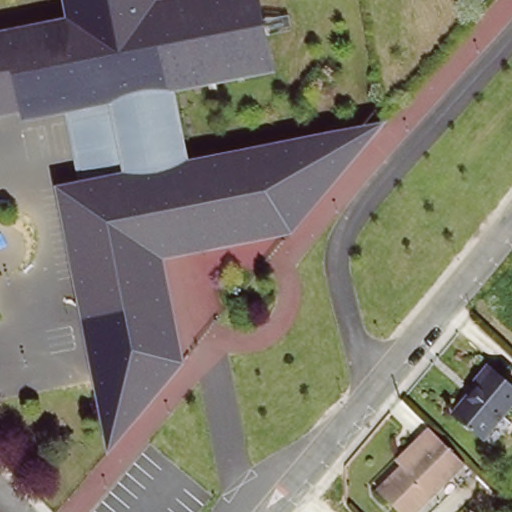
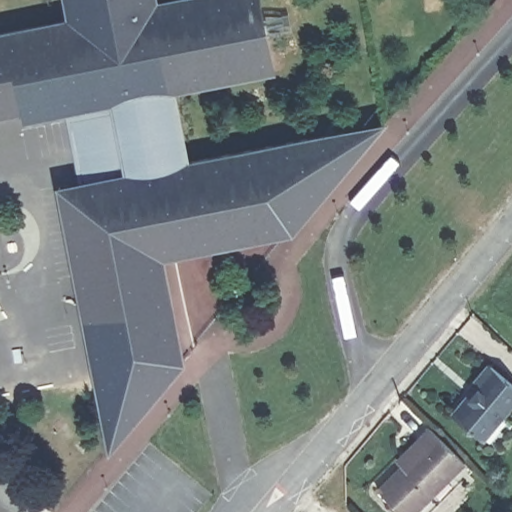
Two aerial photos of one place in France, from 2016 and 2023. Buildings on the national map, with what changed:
unchanged [(157,1),(163,0),(259,0),(263,23),(286,18),(289,34),(266,40),(271,76),(174,93),(189,164),(383,126),(288,240),(166,264),(183,366),(108,454),(55,188),(78,185),(68,115),(23,124),(21,115),(0,119),(0,35),(64,22),(61,0),(157,0),(157,1)]
unchanged [(452,414),(478,383),(474,381),(489,364),(512,384),(512,405),(483,440),(452,414)]
unchanged [(403,465),(397,460),(417,440),(429,428),(466,463),(415,512),(399,512),(378,490),(403,465)]

